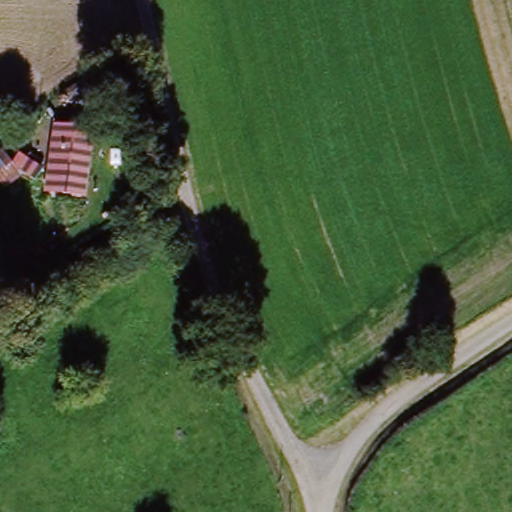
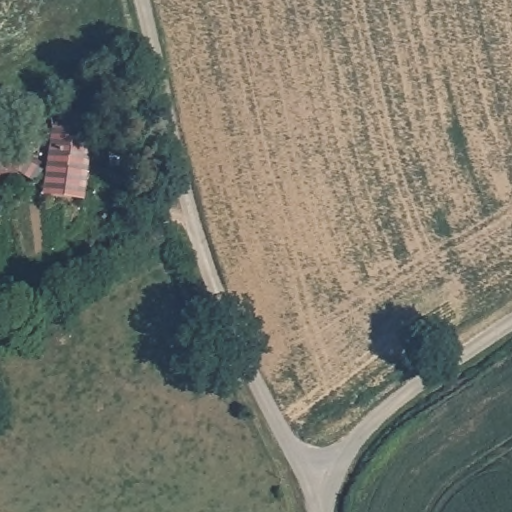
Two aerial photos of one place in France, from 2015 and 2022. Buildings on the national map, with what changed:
unchanged [(90,135),(86,201),(48,198),(52,130),(90,135)]
unchanged [(0,188),(0,155),(12,148),(46,175),(29,190),(19,180),(3,192),(0,188)]

